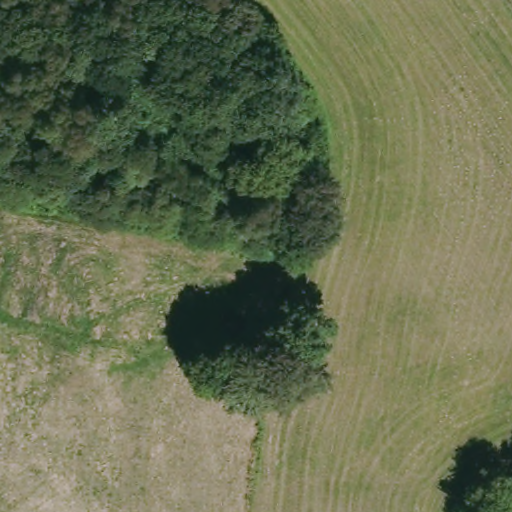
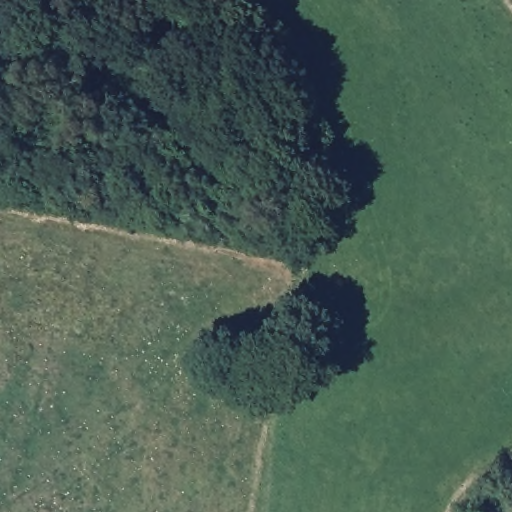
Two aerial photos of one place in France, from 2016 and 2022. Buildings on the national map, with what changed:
[]

